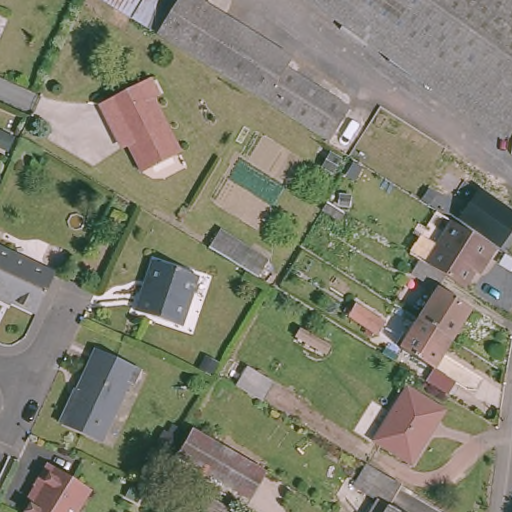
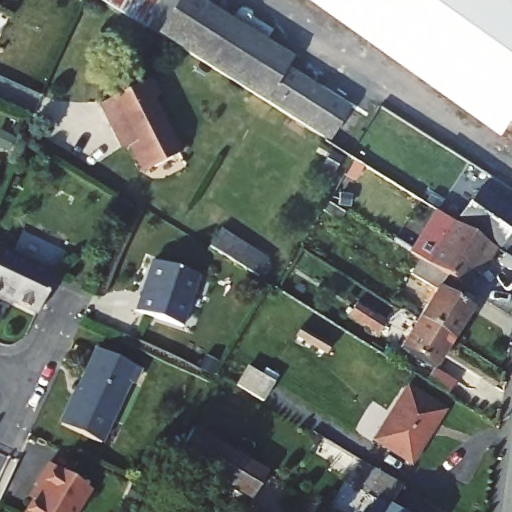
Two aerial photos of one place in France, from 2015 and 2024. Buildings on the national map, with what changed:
unchanged [(172,6),(156,28),(108,0),(162,0),(172,6)]
unchanged [(324,140),(156,28),(172,6),(176,0),(209,0),(289,55),(284,63),(347,107),(324,140)]
unchanged [(349,0),(512,0),(512,120),(349,0)]
unchanged [(149,84),(157,102),(152,105),(184,159),(147,179),(125,141),(118,144),(105,121),(100,114),(110,108),(149,84)]
unchanged [(512,206),(512,225),(500,241),(462,215),(483,185),(512,206)]
unchanged [(341,217),(324,205),(329,197),(347,209),(341,217)]
unchanged [(497,242),(498,243),(489,255),(485,252),(465,279),(464,278),(452,270),(440,263),(469,223),(497,242)]
unchanged [(229,252),(211,241),(220,226),(249,244),(240,259),(229,252)]
unchanged [(37,318),(0,302),(0,245),(59,272),(37,318)]
unchanged [(452,270),(444,282),(473,303),(454,332),(435,320),(422,311),(439,282),(415,267),(425,252),(440,263),(452,270)]
unchanged [(144,294),(148,294),(159,264),(195,278),(186,301),(192,304),(183,330),(139,314),(144,294)]
unchanged [(381,329),(350,311),(359,298),(389,316),(381,329)]
unchanged [(435,320),(454,332),(435,362),(402,341),(422,311),(435,320)]
unchanged [(95,354),(139,375),(132,390),(127,387),(99,447),(60,428),(95,354)]
unchanged [(242,383),(252,364),(278,379),(267,398),(242,383)]
unchanged [(392,413),(412,383),(445,404),(432,423),(435,425),(429,435),(392,413)]
unchanged [(429,435),(414,457),(379,435),(392,413),(429,435)]
unchanged [(192,424),(262,466),(246,492),(173,447),(189,422),(192,424)]
unchanged [(405,482),(393,503),(382,497),(357,484),(372,461),(405,482)]
unchanged [(34,492),(47,470),(90,494),(79,512),(30,512),(39,496),(34,492)]
unchanged [(393,503),(407,512),(373,512),(382,497),(393,503)]

